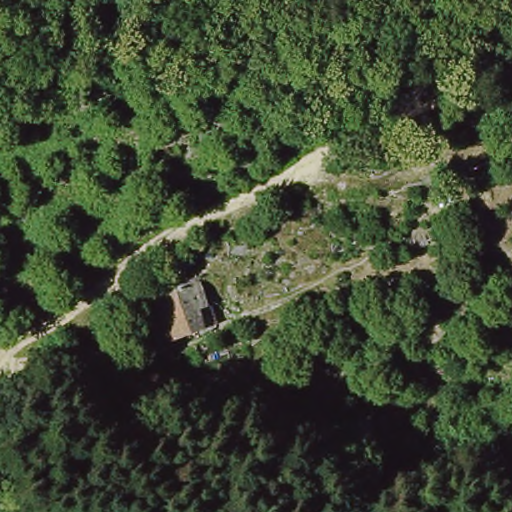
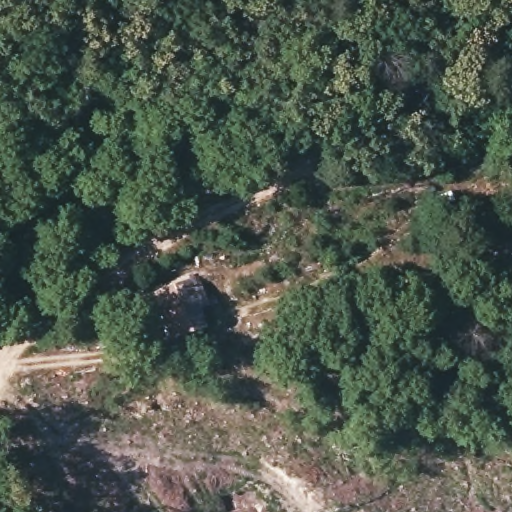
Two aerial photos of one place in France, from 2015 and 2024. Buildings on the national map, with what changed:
unchanged [(202,277),(215,306),(200,313),(208,332),(175,352),(155,302),(202,277)]

